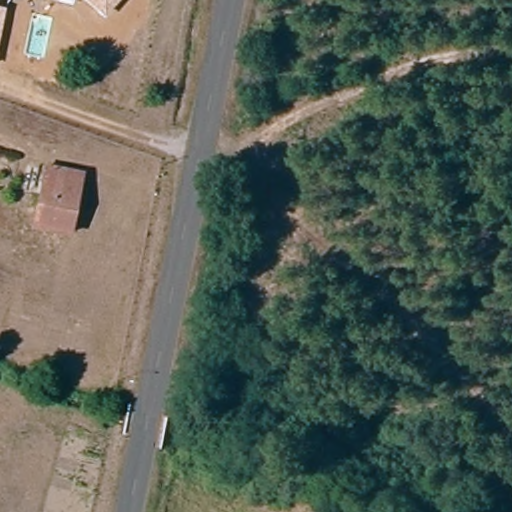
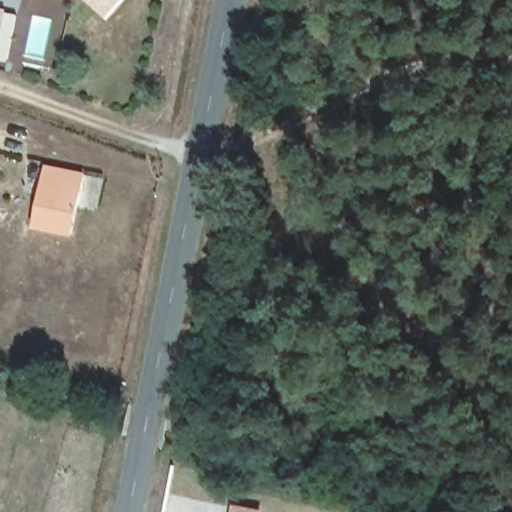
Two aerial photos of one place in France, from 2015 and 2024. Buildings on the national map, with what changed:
unchanged [(104,6),(98,0),(110,0),(104,6)]
unchanged [(0,40),(0,8),(5,10),(0,40)]
unchanged [(77,177),(66,236),(33,229),(45,171),(77,177)]
new [(263,512),(230,512),(231,504),(263,510),(263,512)]

